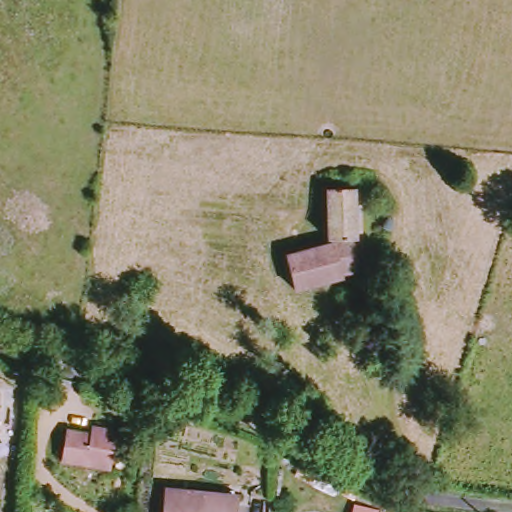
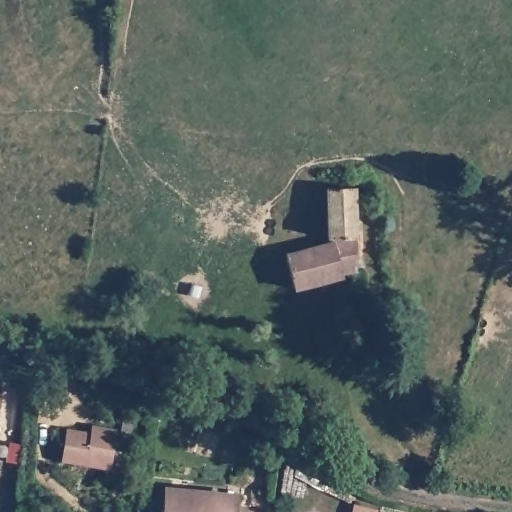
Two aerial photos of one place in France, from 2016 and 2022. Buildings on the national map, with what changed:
unchanged [(363,193),(361,275),(346,277),(347,282),(300,291),(292,257),(339,245),(339,242),(334,242),(331,193),(363,193)]
unchanged [(1,392),(0,406),(0,392),(1,392)]
unchanged [(119,468),(67,461),(73,427),(95,429),(96,423),(125,427),(119,468)]
unchanged [(174,489),(241,501),(238,512),(169,512),(174,489)]
unchanged [(359,507),(380,512),(358,512),(359,507)]
unchanged [(384,508),(402,512),(383,512),(384,508)]

